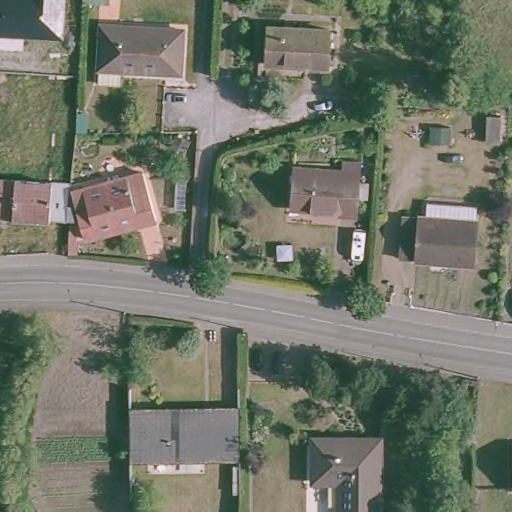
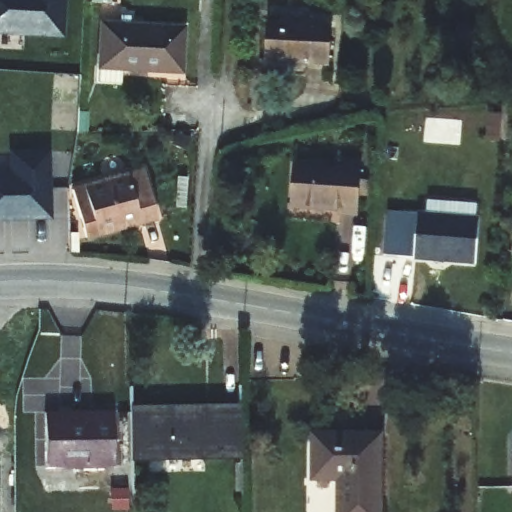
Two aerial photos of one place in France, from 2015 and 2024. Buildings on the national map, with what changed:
unchanged [(0,33),(0,0),(66,0),(65,37),(0,33)]
unchanged [(85,11),(86,0),(112,0),(111,11),(85,11)]
unchanged [(95,29),(173,27),(175,68),(118,70),(118,87),(95,88),(95,29)]
unchanged [(265,65),(267,29),(330,32),(326,69),(265,65)]
unchanged [(501,142),(488,142),(489,114),(501,114),(501,142)]
unchanged [(340,219),(340,213),(291,210),(292,171),(343,175),(343,165),(358,166),(355,220),(340,219)]
unchanged [(143,174),(155,222),(139,227),(134,221),(95,231),(96,237),(83,241),(78,214),(75,192),(143,174)]
unchanged [(34,217),(0,215),(0,177),(23,179),(74,186),(75,192),(72,222),(34,217)]
unchanged [(402,217),(477,222),(476,265),(400,260),(402,217)]
unchanged [(237,406),(239,461),(129,463),(130,409),(237,406)]
new [(115,467),(46,468),(46,413),(115,413),(115,467)]
unchanged [(334,480),(310,481),(307,441),(376,438),(379,512),(336,512),(334,480)]
unchanged [(512,448),(512,477),(510,448),(512,448)]

